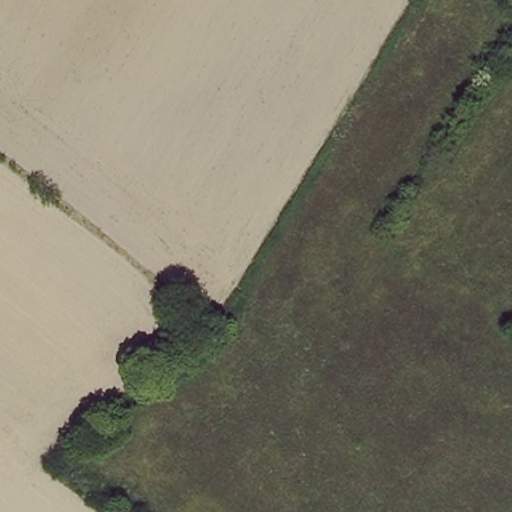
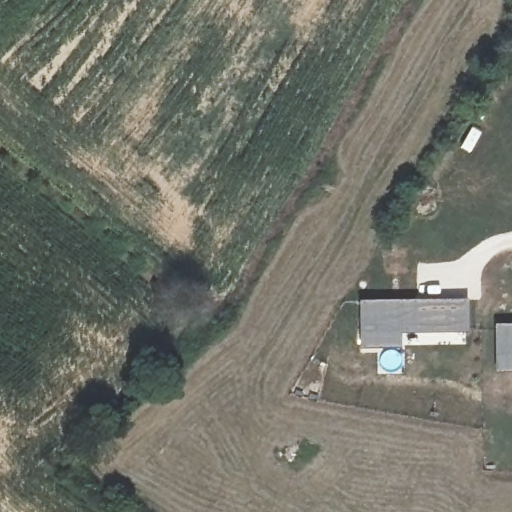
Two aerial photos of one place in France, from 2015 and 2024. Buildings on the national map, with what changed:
new [(399,347),(359,347),(359,300),(466,299),(466,331),(399,332),(399,347)]
new [(496,371),(494,324),(512,323),(512,371),(496,371)]

